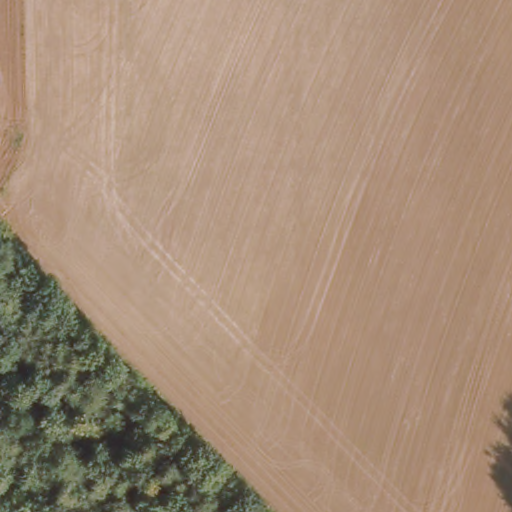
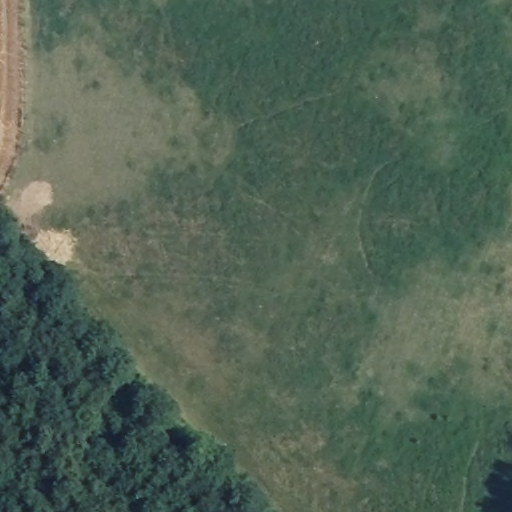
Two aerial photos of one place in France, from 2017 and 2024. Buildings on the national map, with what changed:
[]

